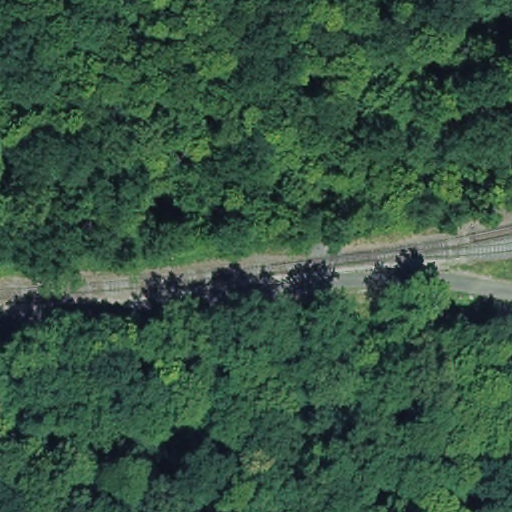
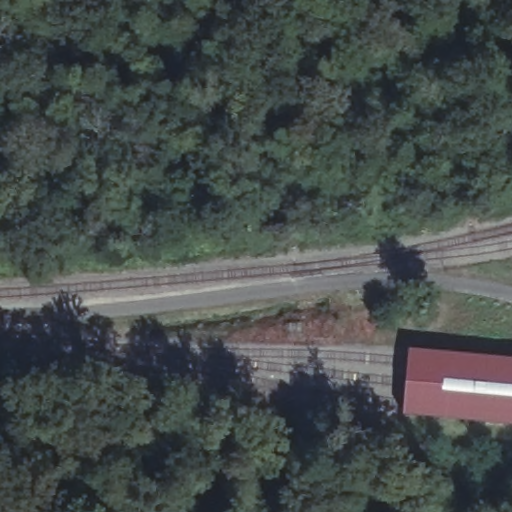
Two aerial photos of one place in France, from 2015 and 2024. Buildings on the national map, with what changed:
new [(512,359),(512,424),(404,414),(409,350),(512,359)]

